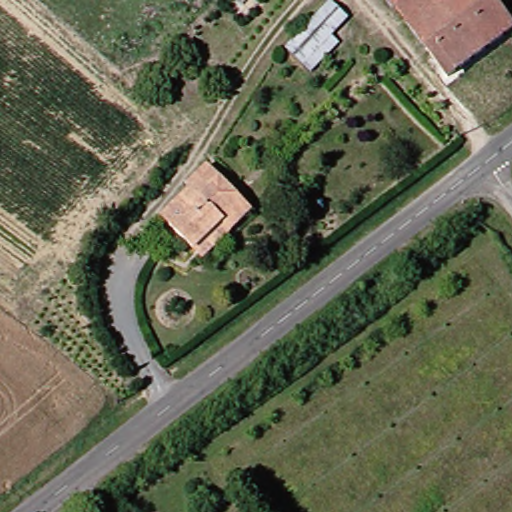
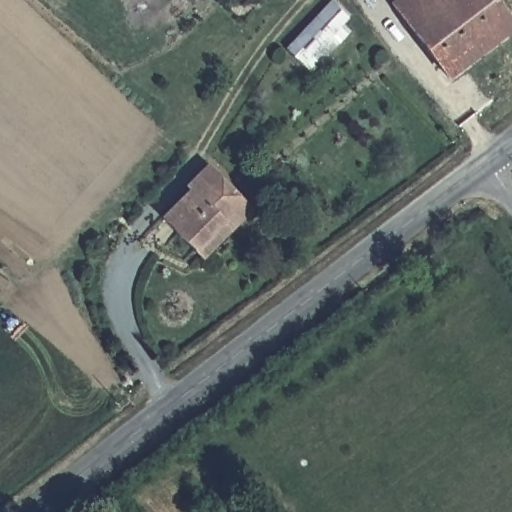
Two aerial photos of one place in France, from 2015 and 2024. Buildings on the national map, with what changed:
unchanged [(394,18),(382,0),(418,0),(484,0),(507,29),(441,77),(394,18)]
unchanged [(280,45),(320,2),(339,21),(318,41),(325,49),(303,70),(280,45)]
unchanged [(177,245),(155,213),(188,187),(184,180),(207,163),(244,212),(219,230),(185,257),(177,245)]

